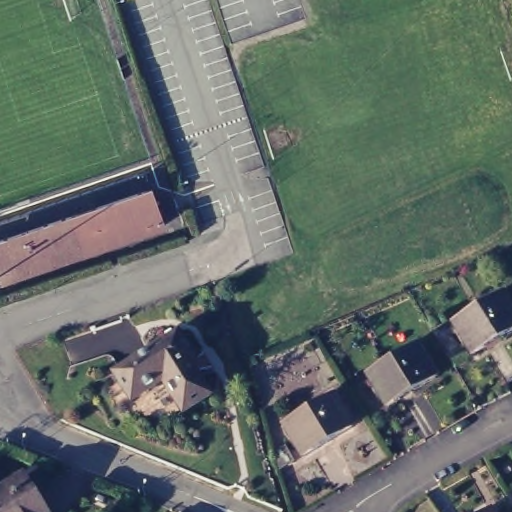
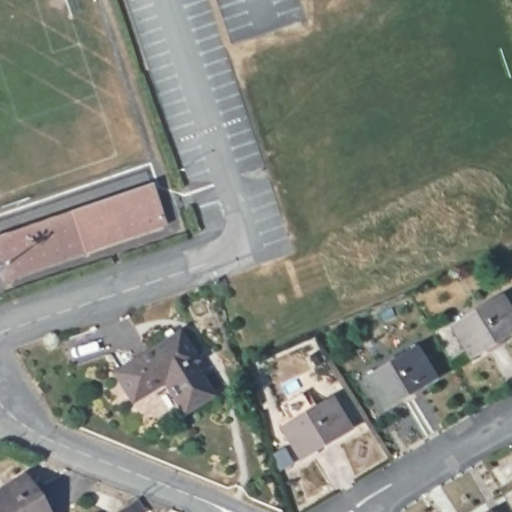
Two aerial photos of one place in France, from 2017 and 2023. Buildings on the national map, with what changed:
unchanged [(5,271),(0,257),(0,231),(73,206),(152,180),(164,216),(82,244),(5,271)]
unchanged [(479,351),(461,320),(507,292),(512,300),(512,330),(479,351)]
unchanged [(132,397),(115,369),(178,330),(196,357),(191,361),(211,392),(184,408),(165,377),(132,397)]
unchanged [(392,401),(374,371),(422,342),(440,372),(392,401)]
unchanged [(291,420),(338,392),(356,423),(309,451),(291,420)]
unchanged [(281,469),(276,452),(285,448),(292,462),(281,469)]
unchanged [(0,491),(8,486),(4,482),(24,472),(49,512),(4,512),(0,505),(0,491)]
unchanged [(0,505),(4,512),(0,512),(0,505)]

